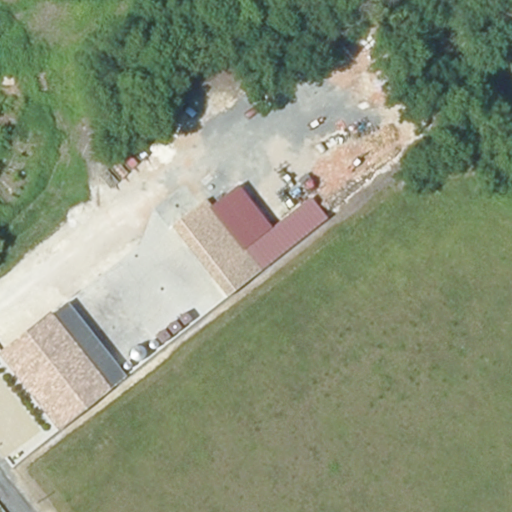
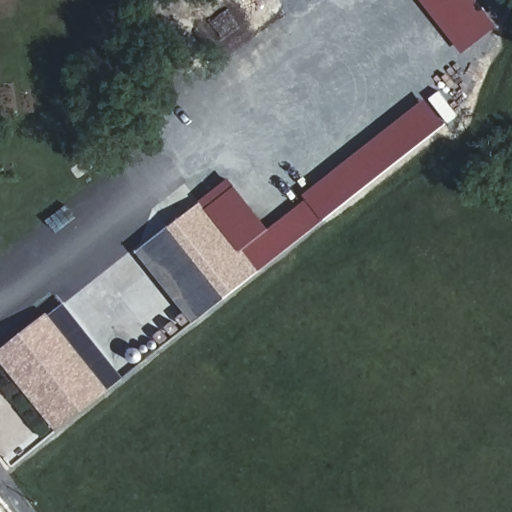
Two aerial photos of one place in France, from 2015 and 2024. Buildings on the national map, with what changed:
new [(420,0),(478,0),(499,27),(464,55),(420,0)]
new [(313,197),(309,192),(426,100),(444,124),(328,216),(313,197)]
unchanged [(237,188),(269,231),(313,197),(328,216),(260,267),(210,208),(237,188)]
unchanged [(228,296),(172,227),(204,201),(210,208),(260,267),(228,296)]
new [(228,296),(194,323),(138,252),(172,227),(228,296)]
unchanged [(125,377),(56,432),(0,357),(0,352),(68,301),(125,377)]

